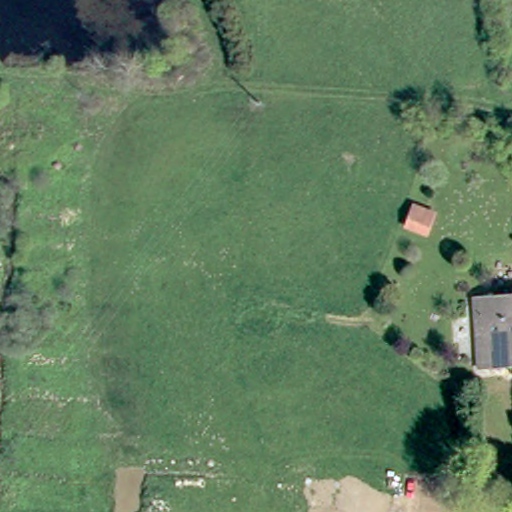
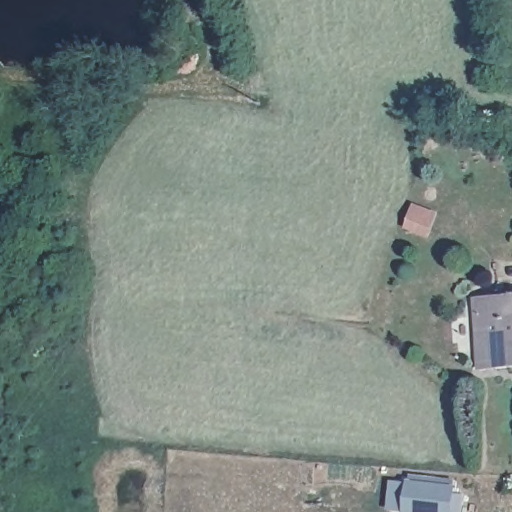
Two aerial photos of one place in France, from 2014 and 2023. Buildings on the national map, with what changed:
unchanged [(478,364),(475,295),(512,293),(512,363),(478,364)]
new [(405,481),(406,479),(456,484),(455,493),(464,493),(462,512),(399,512),(386,509),(390,480),(405,481)]

